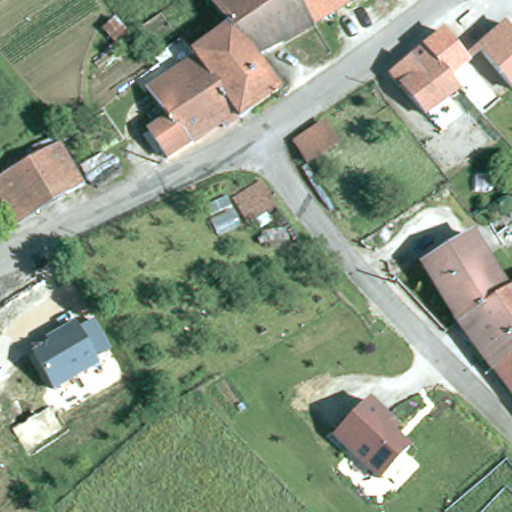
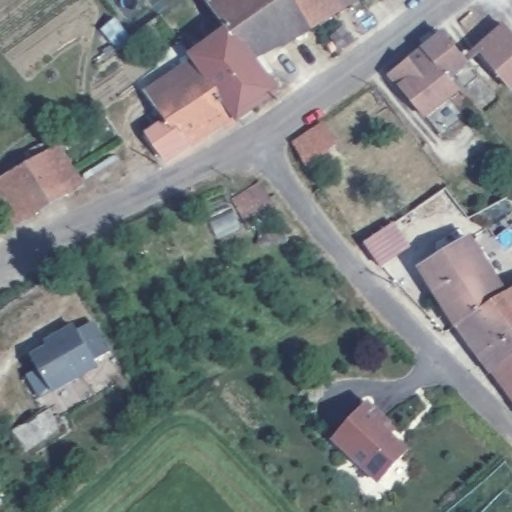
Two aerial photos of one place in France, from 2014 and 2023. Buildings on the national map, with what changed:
unchanged [(338,50),(319,25),(259,57),(283,89),(242,118),(241,116),(200,58),(197,54),(231,29),(210,0),(300,0),(319,25),(339,49),(338,50)]
unchanged [(300,0),(363,0),(319,25),(300,0)]
unchanged [(132,36),(120,46),(104,27),(117,17),(129,34),(132,36)]
unchanged [(484,51),(509,30),(512,33),(512,85),(484,51)]
unchanged [(396,78),(432,50),(448,38),(469,63),(454,76),(467,91),(429,120),(396,78)]
unchanged [(153,135),(172,119),(155,89),(200,58),(241,116),(242,118),(228,128),(225,124),(193,149),(191,148),(171,159),(153,135)]
unchanged [(348,151),(316,171),(297,141),(328,123),(348,151)]
unchanged [(26,224),(21,226),(0,189),(0,183),(65,144),(89,185),(26,224)]
unchanged [(429,267),(476,238),(511,293),(466,322),(429,267)]
unchanged [(503,366),(498,370),(466,322),(511,293),(512,292),(512,359),(503,366)]
unchanged [(75,332),(95,325),(111,352),(97,360),(102,369),(52,398),(30,355),(48,344),(45,340),(70,326),(75,332)]
unchanged [(503,366),(512,359),(512,379),(503,366)]
unchanged [(395,429),(393,434),(411,450),(378,483),(331,441),(368,401),(395,429)]

